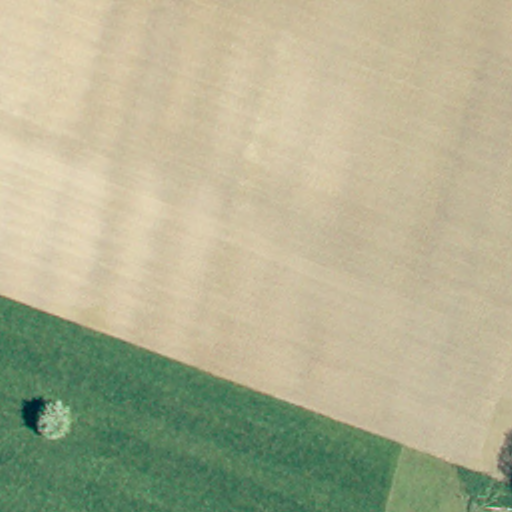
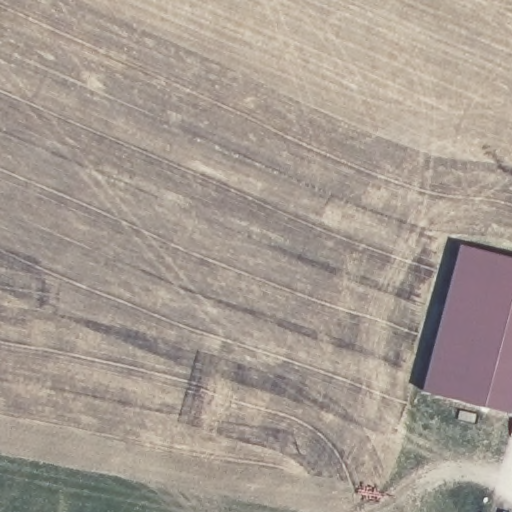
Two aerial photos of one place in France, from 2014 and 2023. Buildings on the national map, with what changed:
new [(423,391),(461,243),(512,256),(512,412),(423,391)]

